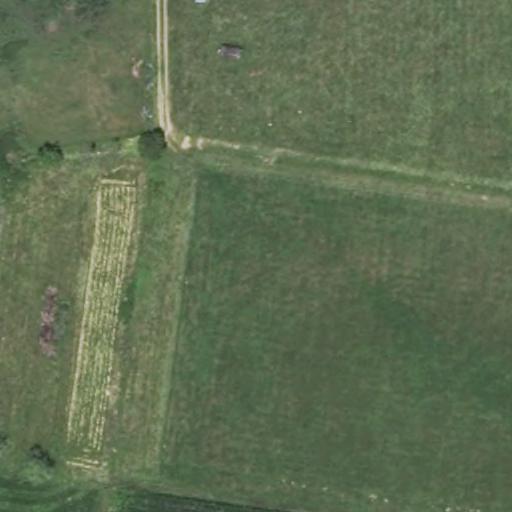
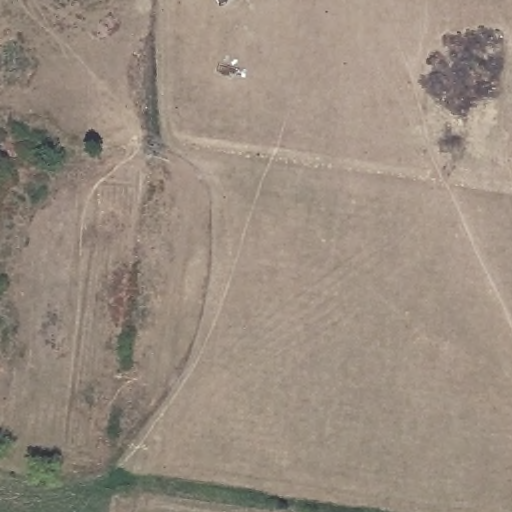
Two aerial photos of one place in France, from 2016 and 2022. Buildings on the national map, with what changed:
[]

